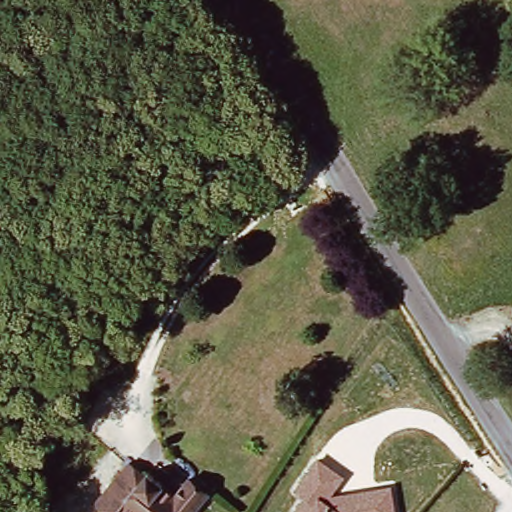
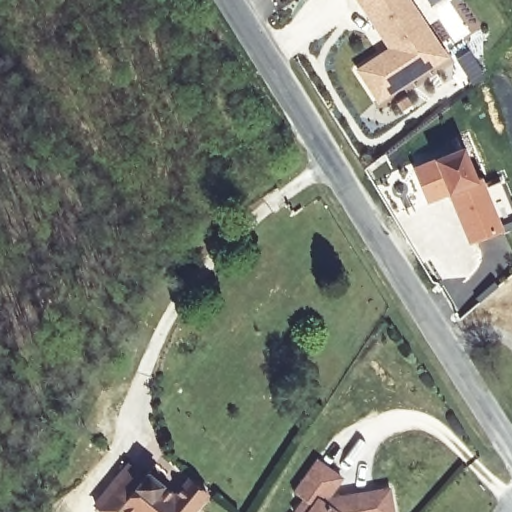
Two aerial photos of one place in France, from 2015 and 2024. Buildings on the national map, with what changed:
new [(448,57),(381,102),(359,69),(389,49),(358,0),(410,0),(448,57)]
new [(512,215),(512,223),(499,228),(469,241),(448,192),(427,201),(413,169),(461,149),(473,180),(478,178),(482,187),(498,180),(512,215)]
unchanged [(299,491),(322,459),(346,476),(329,502),(338,509),(348,494),(389,488),(393,512),(299,512),(309,497),(299,491)]
unchanged [(173,503),(184,490),(201,505),(195,512),(107,512),(141,474),(173,503)]

